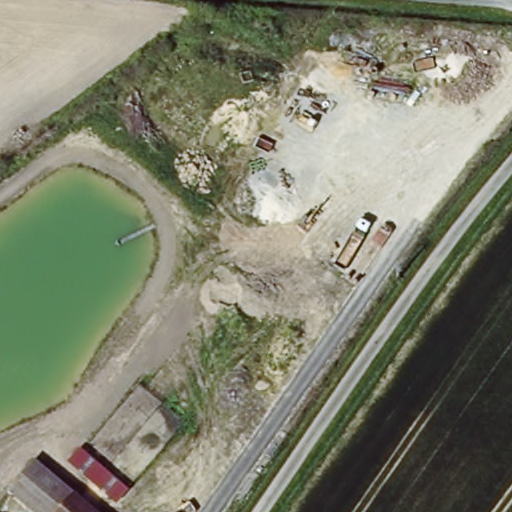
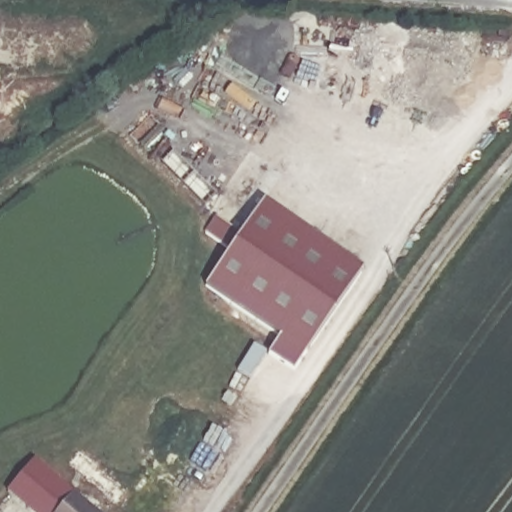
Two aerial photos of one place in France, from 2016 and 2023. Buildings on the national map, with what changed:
new [(297,372),(271,356),(282,339),(207,288),(231,248),(207,233),(219,216),(245,233),(267,203),(365,272),(297,372)]
unchanged [(129,489),(116,505),(65,463),(79,448),(129,489)]
unchanged [(53,512),(18,512),(1,499),(32,464),(68,494),(53,512)]
unchanged [(90,512),(53,512),(68,494),(90,512)]

